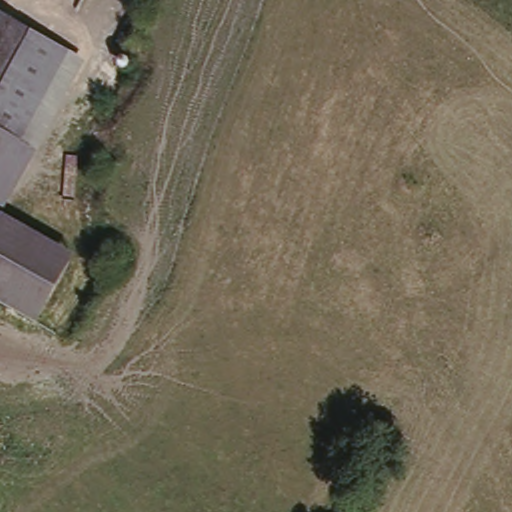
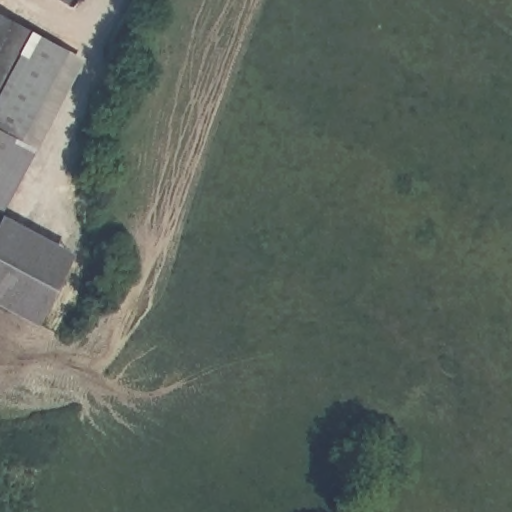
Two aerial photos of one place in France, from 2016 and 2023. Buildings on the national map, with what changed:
unchanged [(0,214),(0,19),(84,61),(0,214)]
unchanged [(34,326),(0,309),(0,219),(75,254),(34,326)]

